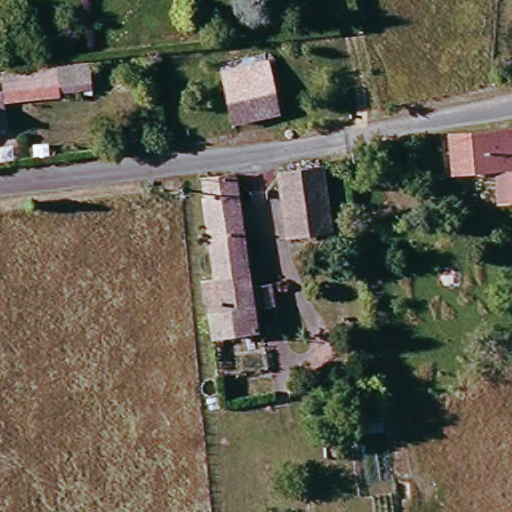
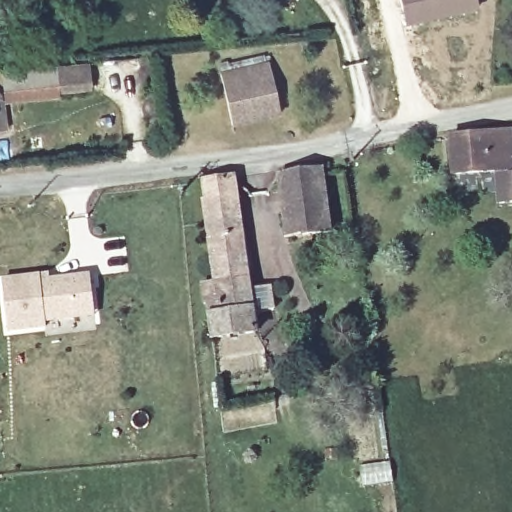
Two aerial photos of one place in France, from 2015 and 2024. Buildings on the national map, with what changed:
new [(405,26),(399,0),(476,0),(479,9),(405,26)]
unchanged [(232,121),(222,70),(270,61),(280,113),(232,121)]
unchanged [(3,80),(0,68),(22,65),(23,77),(3,80)]
unchanged [(57,95),(54,72),(83,68),(87,91),(57,95)]
unchanged [(0,128),(0,119),(1,128),(0,128)]
unchanged [(491,173),(455,179),(448,138),(506,128),(512,170),(512,201),(497,204),(491,173)]
unchanged [(330,232),(289,238),(281,179),(322,173),(330,232)]
unchanged [(269,305),(250,308),(253,331),(212,333),(211,310),(205,311),(202,279),(214,278),(204,180),(235,174),(248,285),(267,284),(269,305)]
new [(74,317),(41,321),(41,327),(3,330),(0,303),(0,280),(35,275),(44,275),(45,280),(86,275),(88,295),(90,315),(74,317)]

